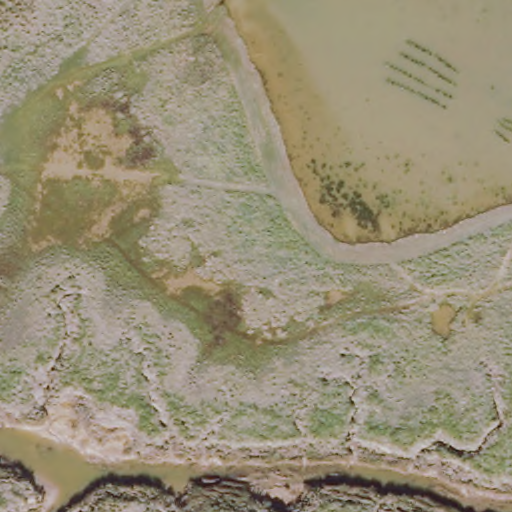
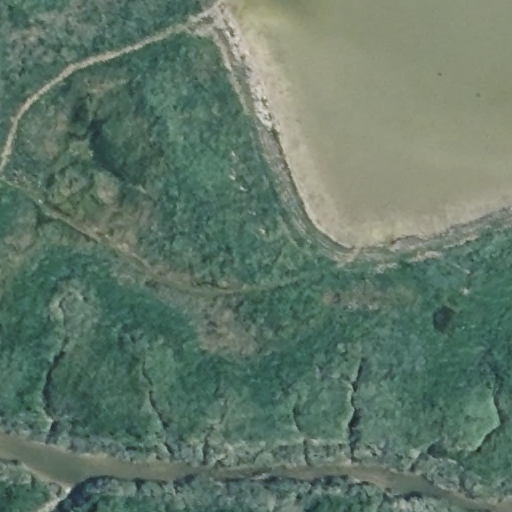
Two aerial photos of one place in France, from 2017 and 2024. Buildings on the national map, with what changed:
[]

